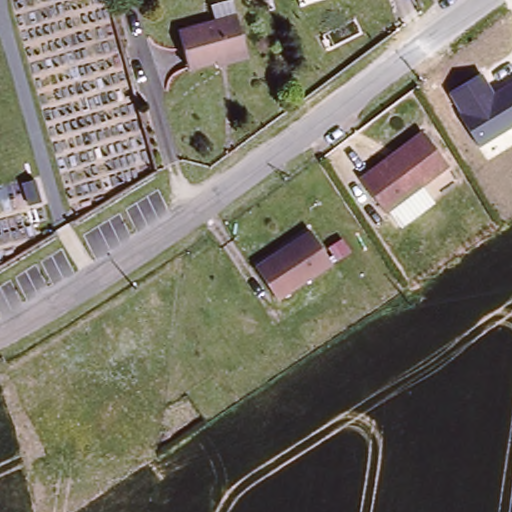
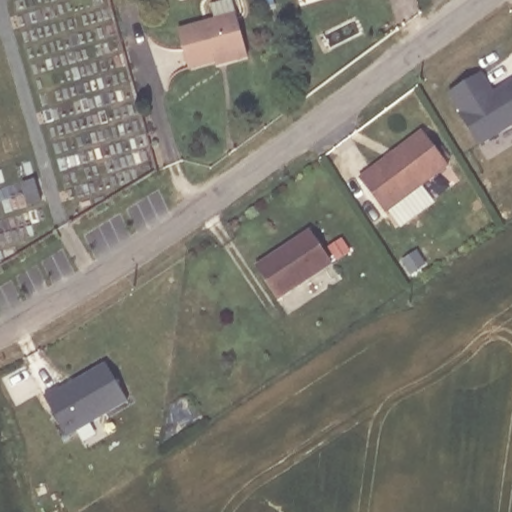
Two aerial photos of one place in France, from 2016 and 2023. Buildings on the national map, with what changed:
unchanged [(210,4),(224,0),(231,0),(235,13),(245,56),(217,63),(217,58),(187,66),(177,28),(214,18),(210,4)]
unchanged [(480,73),(493,91),(512,79),(512,125),(480,145),(447,94),(480,73)]
unchanged [(420,131),(446,165),(384,212),(359,179),(420,131)]
unchanged [(39,205),(27,209),(19,188),(31,184),(39,205)]
unchanged [(312,228),(332,259),(279,297),(260,266),(312,228)]
new [(45,396),(58,388),(60,390),(105,364),(129,403),(69,437),(45,396)]

